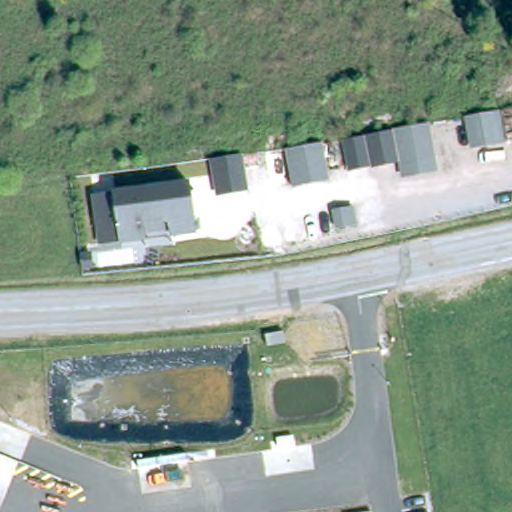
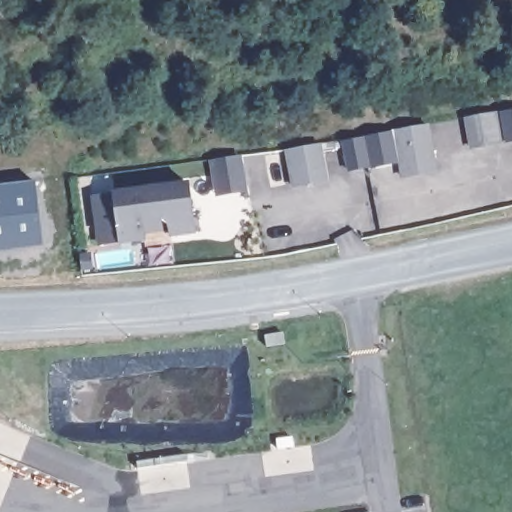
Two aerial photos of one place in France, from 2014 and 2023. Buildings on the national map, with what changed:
unchanged [(506,143),(469,150),(464,118),(500,111),(506,143)]
unchanged [(439,171),(402,179),(399,164),(371,170),(371,167),(346,172),(341,141),(430,123),(439,171)]
unchanged [(329,180),(291,187),(285,150),(322,143),(329,180)]
unchanged [(248,192),(216,198),(210,161),(242,155),(248,192)]
new [(43,244),(0,248),(0,186),(36,181),(43,244)]
unchanged [(197,233),(96,246),(91,195),(190,181),(197,233)]

